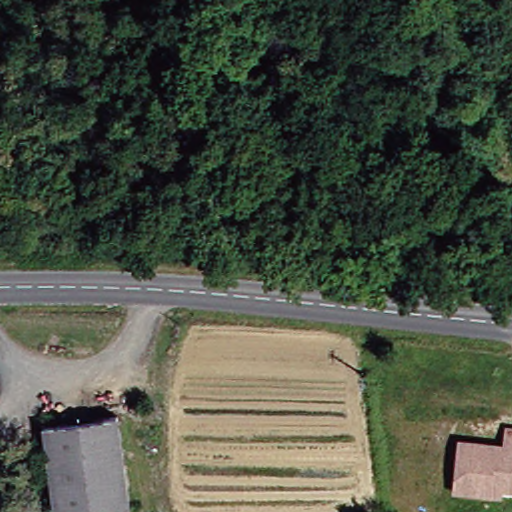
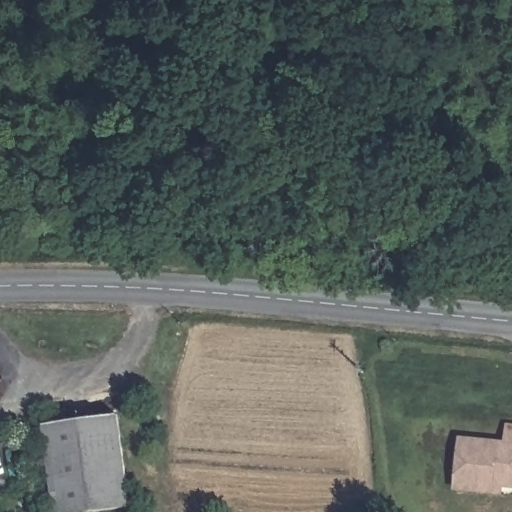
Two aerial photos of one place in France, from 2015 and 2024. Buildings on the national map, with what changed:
unchanged [(111,512),(57,512),(45,429),(119,420),(133,509),(111,512)]
unchanged [(499,490),(497,498),(461,498),(462,446),(508,447),(509,429),(512,429),(512,490),(499,490)]

